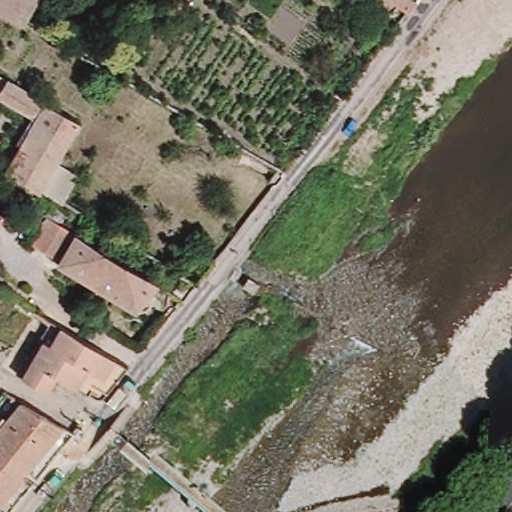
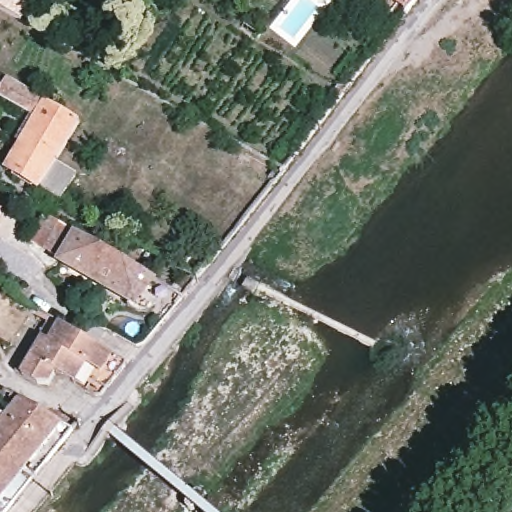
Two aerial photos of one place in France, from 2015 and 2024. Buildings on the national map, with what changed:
unchanged [(21,17),(16,15),(0,5),(0,0),(30,0),(21,17)]
unchanged [(410,6),(401,0),(415,0),(410,6)]
unchanged [(377,10),(380,6),(381,4),(386,7),(385,10),(382,15),(377,10)]
unchanged [(40,189),(8,170),(39,121),(0,97),(10,81),(47,104),(80,121),(55,162),(40,189)]
unchanged [(62,202),(40,189),(55,162),(77,176),(62,202)]
unchanged [(64,256),(35,240),(50,211),(79,230),(64,256)]
unchanged [(177,258),(197,232),(215,244),(194,268),(177,258)]
unchanged [(84,234),(158,277),(140,300),(70,257),(84,234)]
unchanged [(47,390),(42,389),(15,372),(25,355),(29,357),(48,325),(52,317),(130,365),(102,400),(95,399),(80,390),(57,375),(47,390)]
unchanged [(58,416),(70,423),(32,471),(21,461),(17,466),(29,476),(0,510),(0,412),(17,391),(58,416)]

